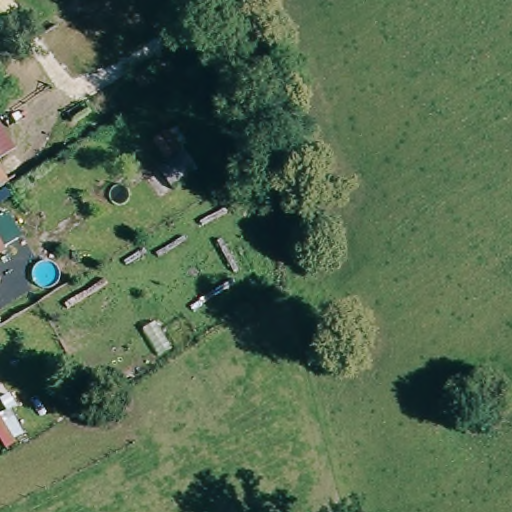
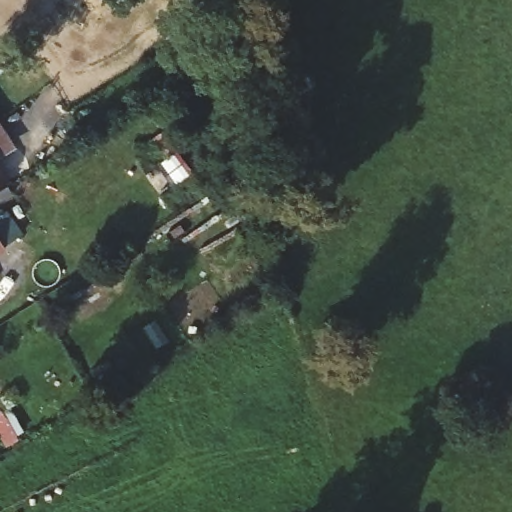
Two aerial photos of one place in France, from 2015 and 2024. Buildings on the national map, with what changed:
unchanged [(0,122),(17,148),(0,158),(0,122)]
unchanged [(159,166),(168,157),(156,134),(180,125),(186,136),(191,134),(207,157),(196,165),(200,172),(173,189),(159,166)]
unchanged [(0,185),(0,167),(9,182),(2,187),(0,185)]
unchanged [(0,195),(0,185),(5,192),(0,195)]
unchanged [(0,255),(0,240),(7,251),(0,255)]

